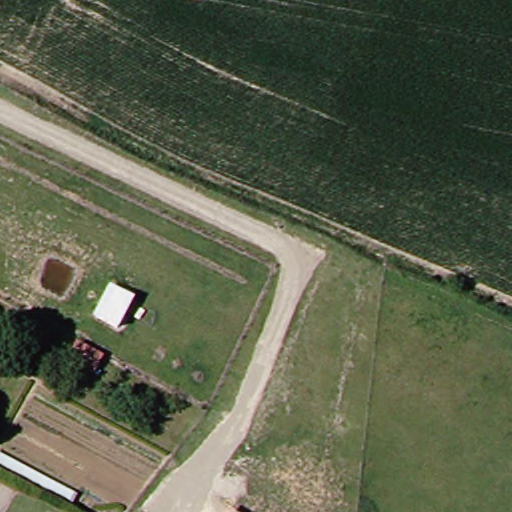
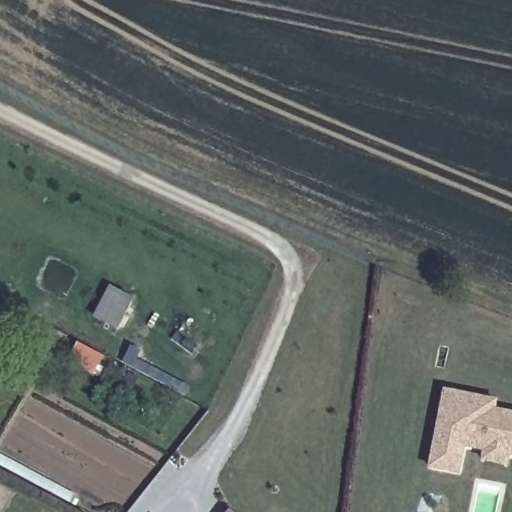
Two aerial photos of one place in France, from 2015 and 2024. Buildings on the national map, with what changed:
new [(111,286),(135,300),(120,326),(96,312),(111,286)]
unchanged [(91,373),(69,362),(79,344),(99,355),(91,373)]
new [(447,467),(429,463),(444,388),(495,399),(493,407),(512,411),(512,452),(507,451),(505,461),(482,457),(484,448),(463,443),(458,465),(457,469),(447,467)]
new [(230,509),(234,512),(228,512),(230,509)]

